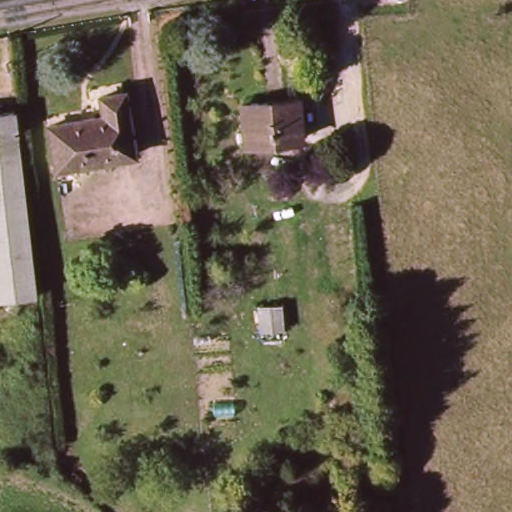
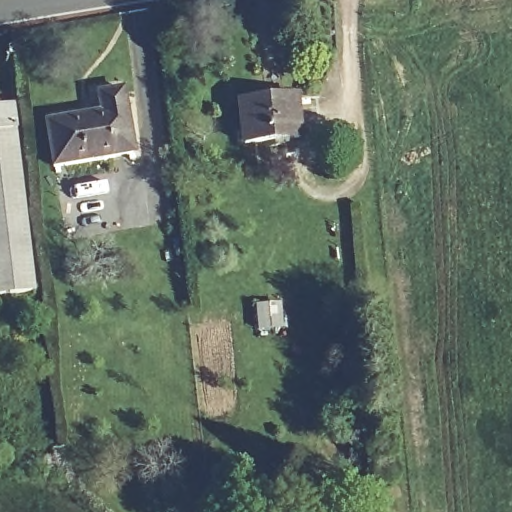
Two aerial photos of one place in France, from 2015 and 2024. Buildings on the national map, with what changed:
unchanged [(58,113),(101,107),(99,87),(132,84),(134,95),(143,154),(66,166),(59,124),(58,113)]
unchanged [(245,102),(301,92),(310,137),(255,146),(245,102)]
unchanged [(43,285),(4,292),(0,262),(0,110),(20,108),(43,285)]

